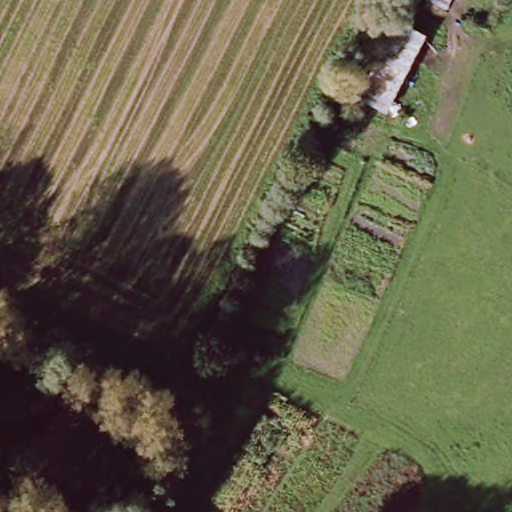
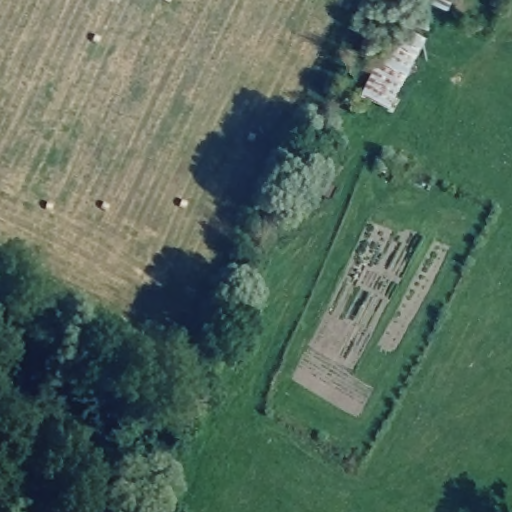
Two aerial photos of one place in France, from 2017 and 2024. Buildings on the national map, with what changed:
unchanged [(452,0),(446,13),(419,0),(452,0)]
unchanged [(389,115),(357,99),(394,21),(428,39),(389,115)]

